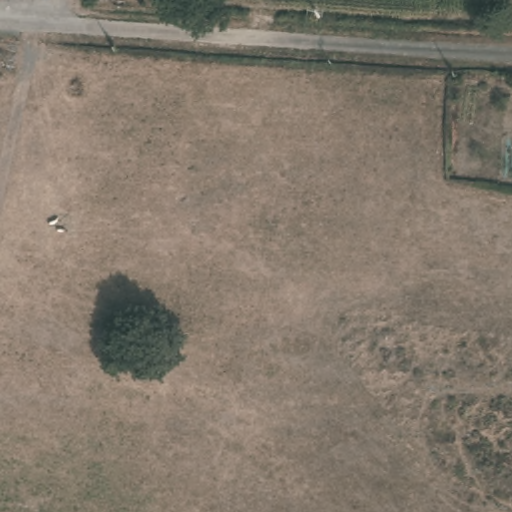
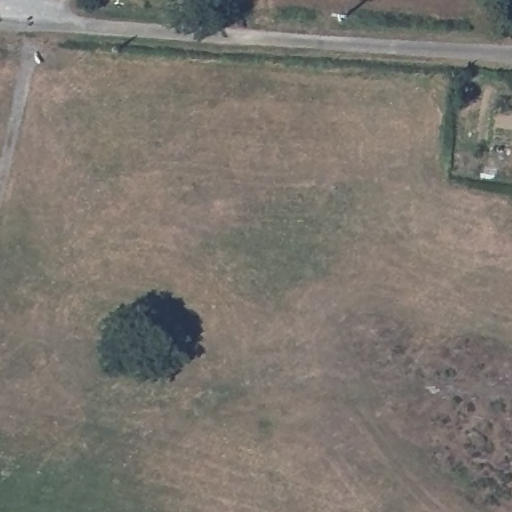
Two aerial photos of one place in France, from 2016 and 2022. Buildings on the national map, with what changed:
[]

